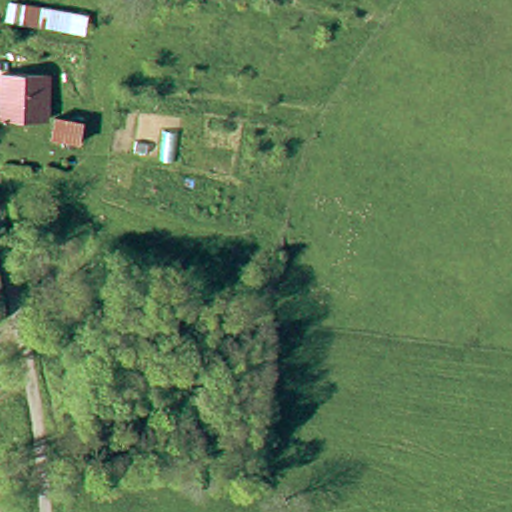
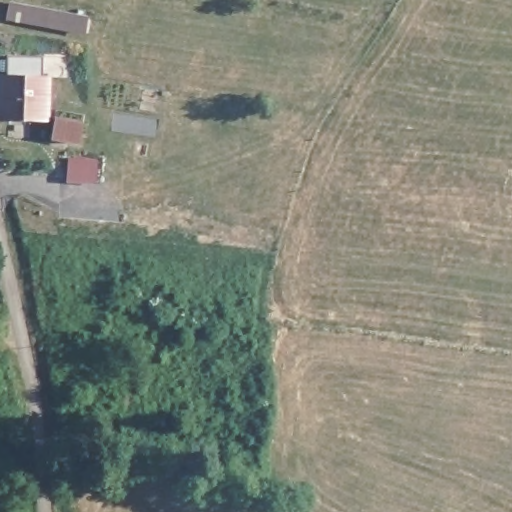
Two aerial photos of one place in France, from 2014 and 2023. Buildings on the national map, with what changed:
unchanged [(6,123),(4,83),(48,83),(48,122),(6,123)]

